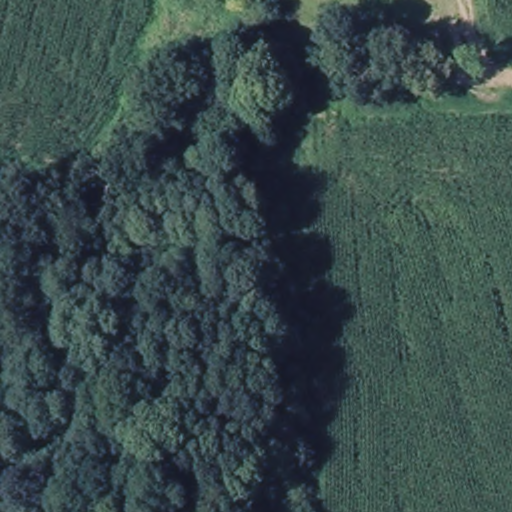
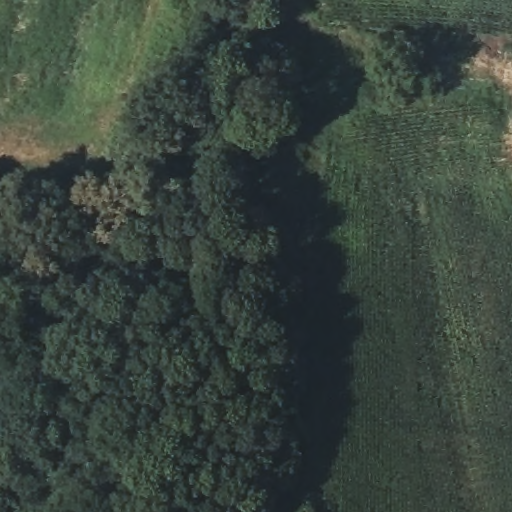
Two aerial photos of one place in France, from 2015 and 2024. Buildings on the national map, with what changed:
[]

